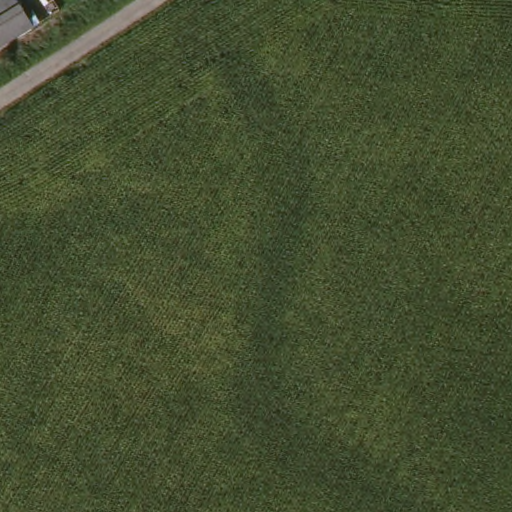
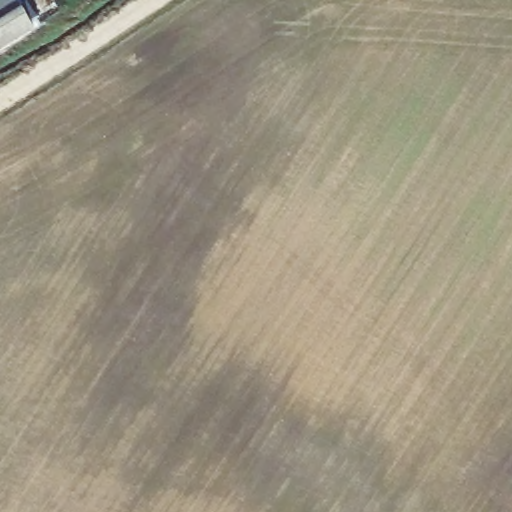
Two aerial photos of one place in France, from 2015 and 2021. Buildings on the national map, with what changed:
unchanged [(7,0),(8,0),(29,31),(0,50),(0,4),(7,0)]

